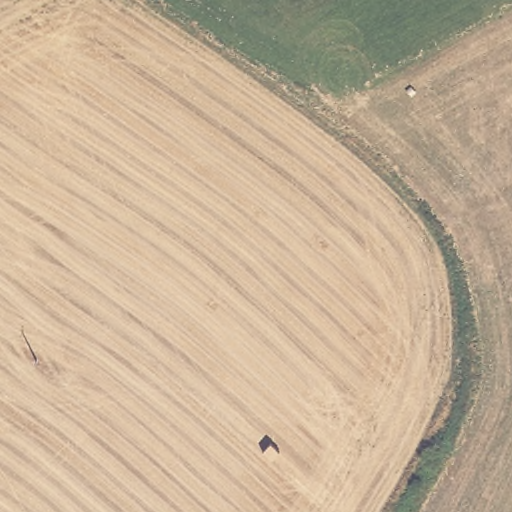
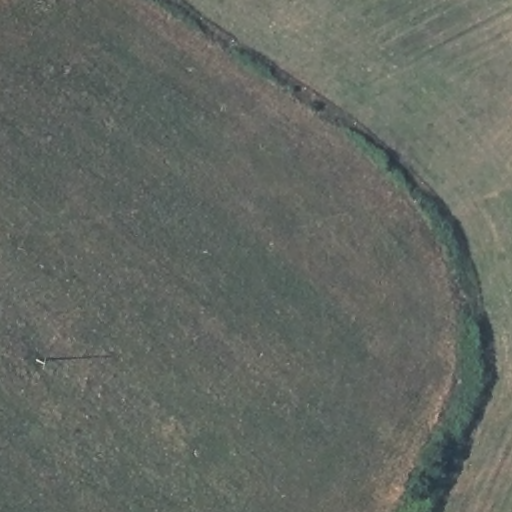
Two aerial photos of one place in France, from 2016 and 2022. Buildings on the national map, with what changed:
[]

